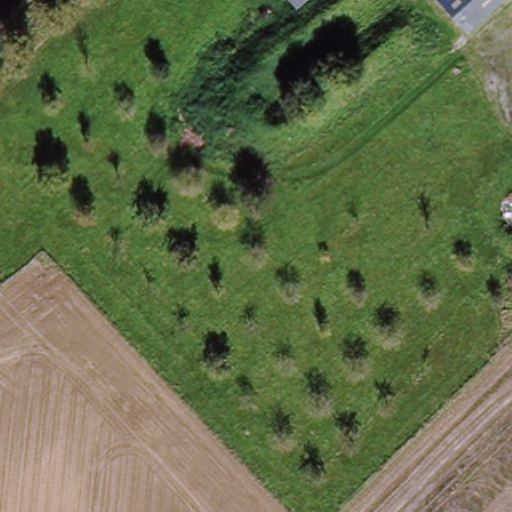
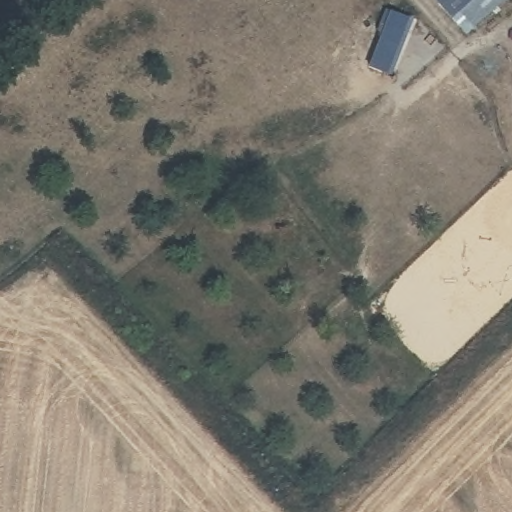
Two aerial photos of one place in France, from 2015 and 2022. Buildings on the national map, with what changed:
demolished [(286,0),(314,0),(299,15),(286,0)]
unchanged [(438,0),(512,0),(512,2),(473,38),(438,0)]
new [(409,17),(387,74),(368,67),(383,32),(377,30),(386,10),(409,17)]

